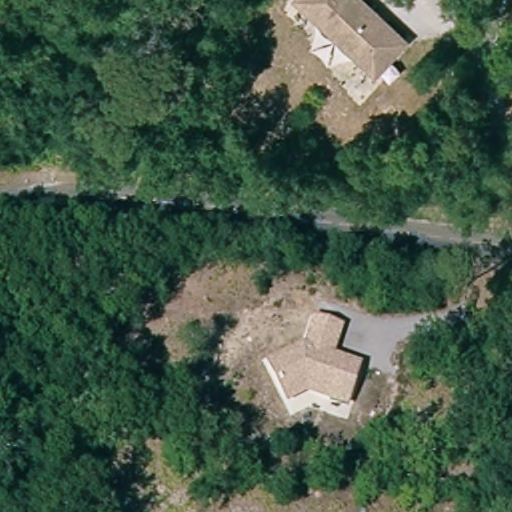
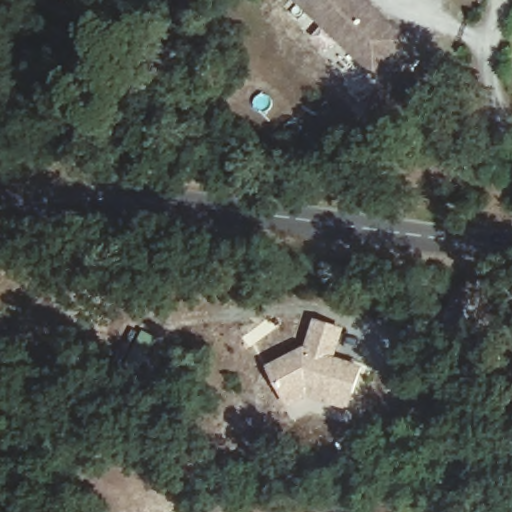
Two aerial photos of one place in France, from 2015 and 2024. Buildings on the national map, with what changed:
unchanged [(309,10),(299,0),(364,0),(373,9),(388,23),(409,42),(378,75),(309,10)]
unchanged [(330,402),(307,395),(288,405),(269,371),(304,350),(306,351),(312,336),(316,322),(341,330),(336,345),(331,360),(360,369),(351,395),(346,407),(330,402)]

